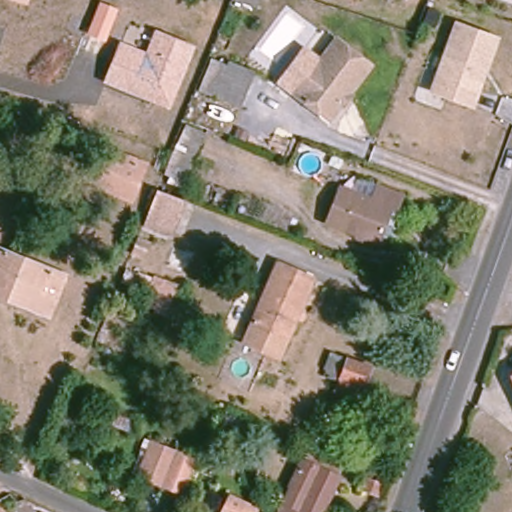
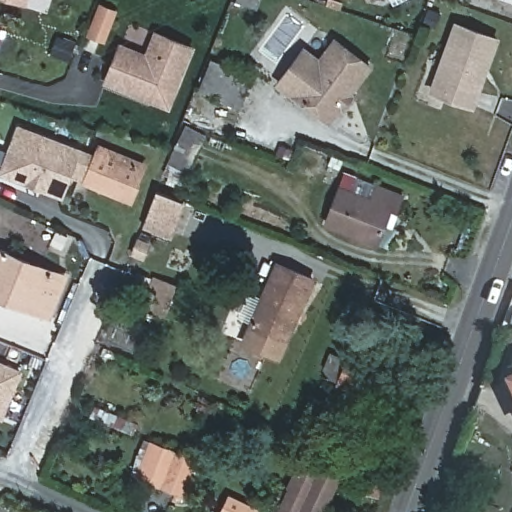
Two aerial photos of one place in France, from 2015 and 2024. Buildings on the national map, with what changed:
unchanged [(11,0),(28,0),(27,5),(11,0)]
unchanged [(496,38),(472,104),(432,90),(456,23),(496,38)]
unchanged [(168,111),(101,85),(117,41),(145,53),(154,29),(194,45),(168,111)]
new [(58,35),(78,42),(72,59),(52,51),(58,35)]
unchanged [(265,46),(240,108),(199,92),(212,60),(228,66),(239,36),(265,46)]
unchanged [(344,104),(341,102),(328,120),(293,94),(276,82),(301,45),(319,59),(334,39),(368,64),(347,94),(350,96),(344,104)]
new [(71,177),(62,200),(0,174),(0,165),(17,123),(82,148),(99,155),(101,150),(142,166),(130,197),(110,189),(89,181),(71,177)]
unchanged [(166,175),(186,126),(205,133),(184,183),(166,175)]
demolished [(115,176),(94,168),(101,150),(142,166),(130,197),(110,189),(115,176)]
unchanged [(341,186),(372,198),(377,186),(403,196),(397,211),(392,209),(378,243),(327,222),(341,186)]
unchanged [(160,194),(183,203),(172,233),(148,224),(160,194)]
unchanged [(65,281),(49,318),(0,299),(0,254),(65,281)]
unchanged [(309,281),(286,335),(276,358),(241,344),(251,322),(274,266),(309,281)]
unchanged [(141,318),(151,278),(177,286),(162,327),(141,318)]
unchanged [(332,399),(340,381),(325,375),(332,358),(346,364),(371,373),(357,409),(332,399)]
new [(22,370),(1,417),(0,417),(0,360),(22,370)]
unchanged [(135,422),(131,434),(90,416),(95,404),(135,422)]
unchanged [(152,442),(194,460),(181,494),(137,476),(152,442)]
unchanged [(296,457),(299,449),(305,452),(306,449),(343,467),(338,477),(322,512),(277,512),(302,460),(296,457)]
unchanged [(361,487),(364,477),(382,485),(379,493),(361,487)]
unchanged [(230,498),(245,505),(258,512),(257,512),(224,512),(230,498)]

